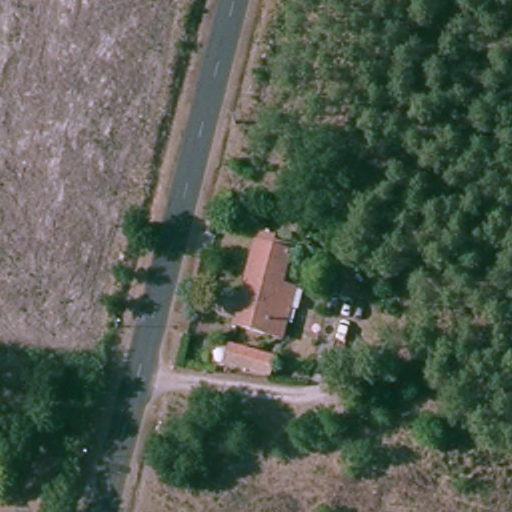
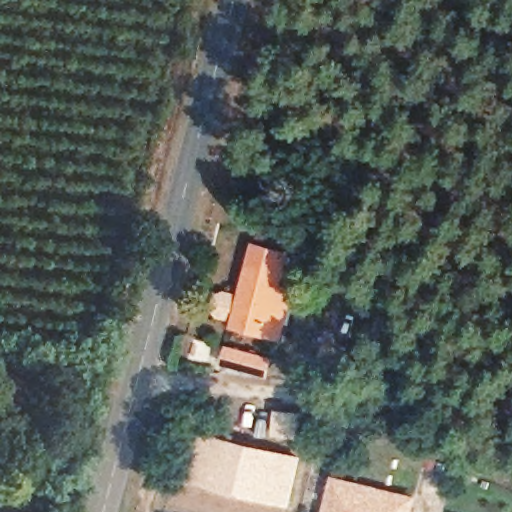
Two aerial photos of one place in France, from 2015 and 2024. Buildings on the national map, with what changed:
unchanged [(297,292),(290,326),(286,340),(280,339),(240,330),(241,323),(225,320),(221,314),(224,301),(230,297),(247,301),(260,241),(293,248),(285,289),(290,290),(297,292)]
unchanged [(237,345),(274,351),(270,367),(235,360),(237,345)]
new [(209,430),(303,455),(290,506),(193,481),(209,430)]
new [(420,496),(416,512),(325,512),(334,475),(420,496)]

